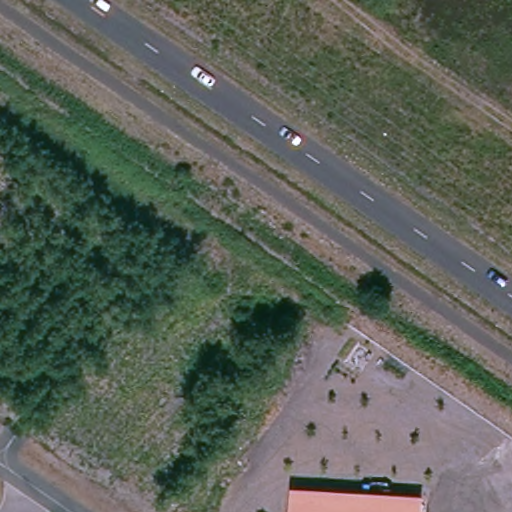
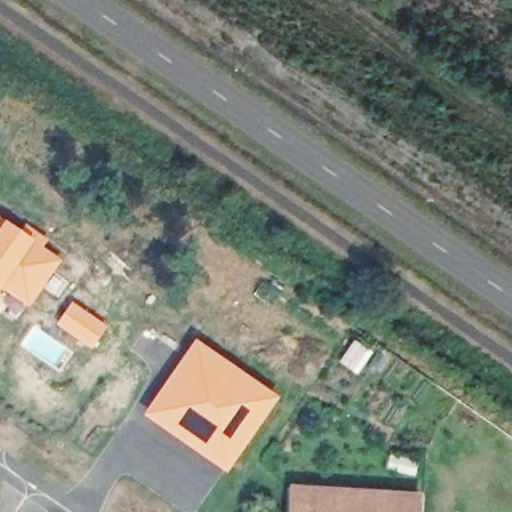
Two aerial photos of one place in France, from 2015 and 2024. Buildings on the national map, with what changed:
new [(25,223),(49,239),(44,247),(62,259),(27,309),(3,292),(0,296),(0,217),(20,230),(25,223)]
new [(71,302),(108,327),(92,349),(55,325),(71,302)]
new [(195,338),(280,397),(227,474),(143,415),(195,338)]
new [(354,339),(373,352),(357,375),(338,362),(354,339)]
unchanged [(294,487),(425,495),(424,512),(291,512),(294,487)]

